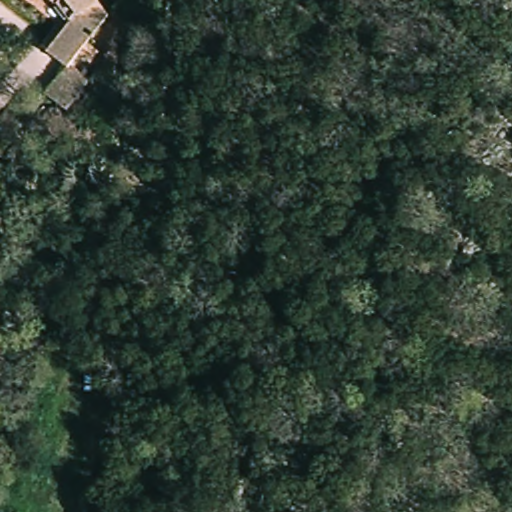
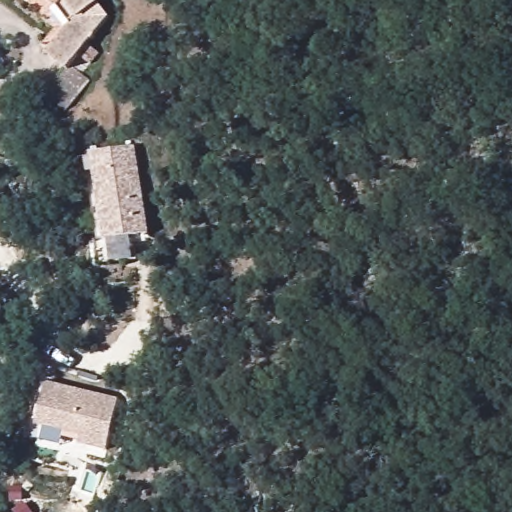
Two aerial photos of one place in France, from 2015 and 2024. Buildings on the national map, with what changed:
unchanged [(103,13),(60,73),(43,61),(53,45),(70,22),(44,0),(89,0),(103,13)]
new [(136,146),(148,235),(104,243),(90,155),(136,146)]
new [(51,389),(123,405),(111,455),(84,449),(85,440),(42,431),(51,389)]

